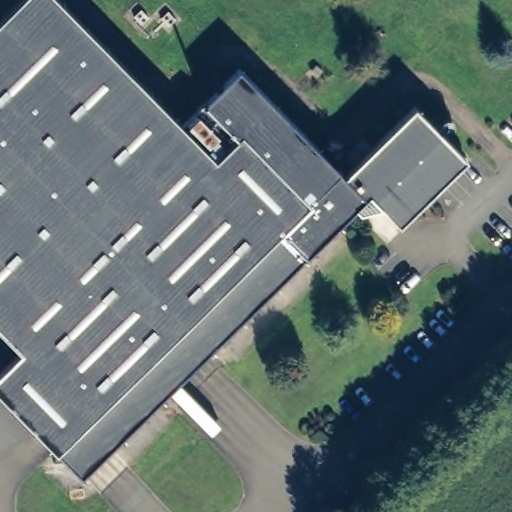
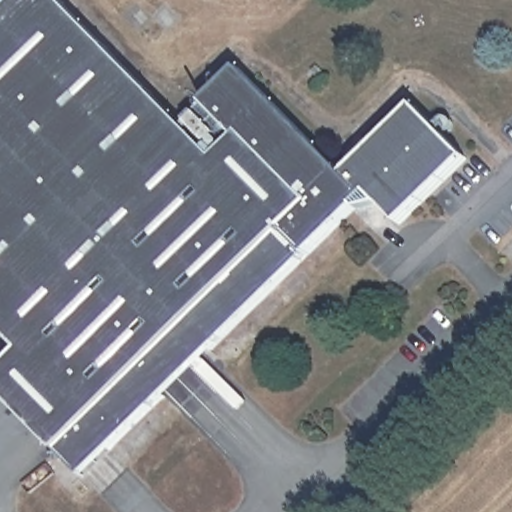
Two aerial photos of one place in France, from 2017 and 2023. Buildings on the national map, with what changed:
unchanged [(59,0),(183,125),(245,66),(348,178),(420,108),(471,160),(404,227),(383,208),(376,211),(368,211),(360,206),(83,477),(0,392),(0,373),(22,350),(0,327),(0,21),(21,0),(59,0)]

